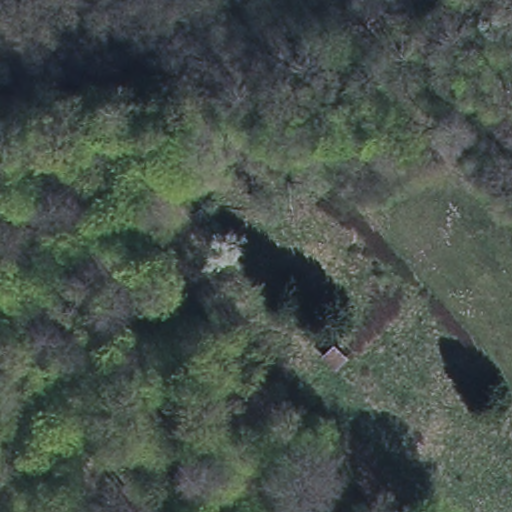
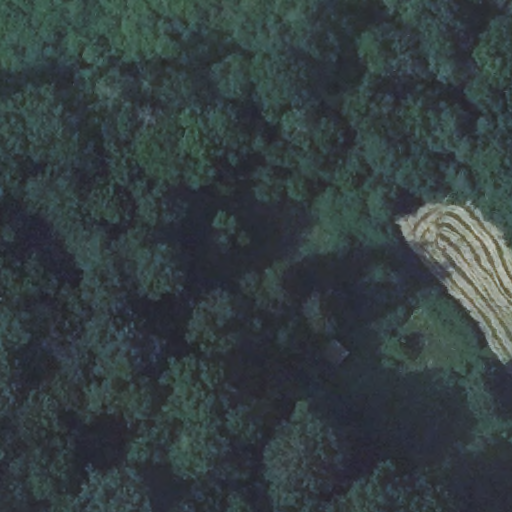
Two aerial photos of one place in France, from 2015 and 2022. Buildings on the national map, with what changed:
unchanged [(349,354),(337,365),(327,354),(338,343),(349,354)]

